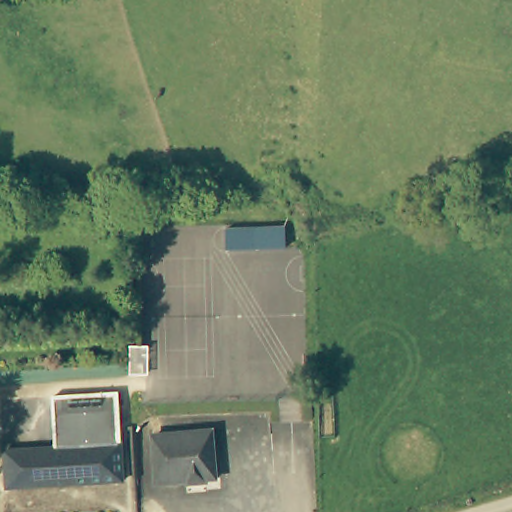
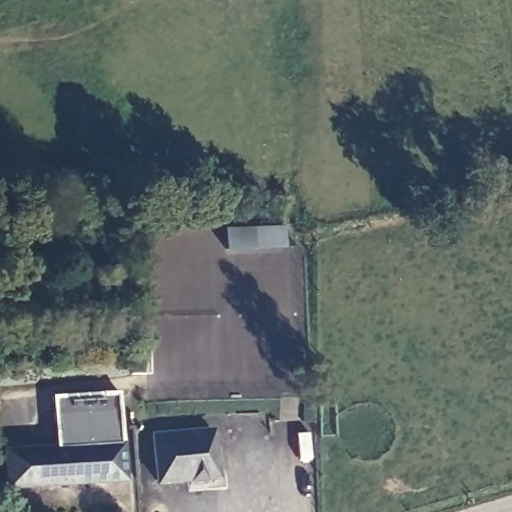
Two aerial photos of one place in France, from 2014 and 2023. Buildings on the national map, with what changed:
unchanged [(222,224),(282,221),(283,242),(223,244),(222,224)]
unchanged [(129,343),(148,342),(149,370),(131,371),(129,343)]
unchanged [(0,449),(49,447),(49,434),(48,397),(114,395),(115,431),(116,482),(1,486),(0,472),(0,449)]
unchanged [(151,434),(211,430),(214,477),(154,480),(151,434)]

